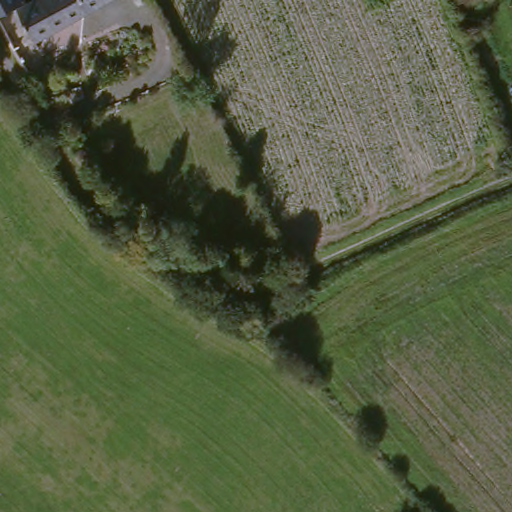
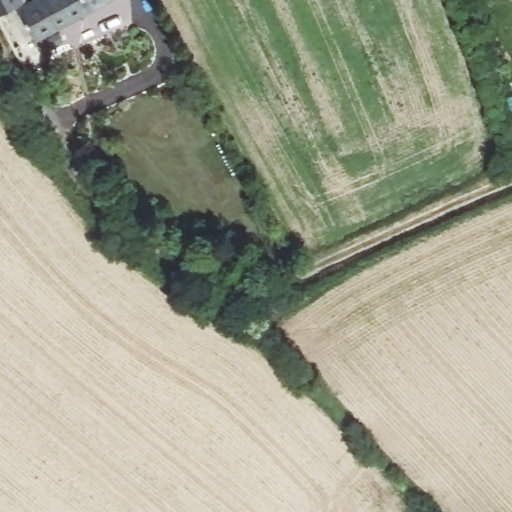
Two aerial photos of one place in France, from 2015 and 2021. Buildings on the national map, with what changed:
unchanged [(9,4),(0,8),(0,0),(7,0),(9,4)]
unchanged [(102,0),(30,39),(16,7),(30,0),(102,0)]

